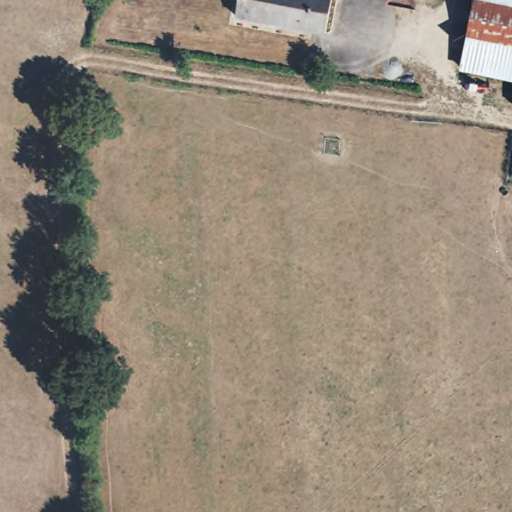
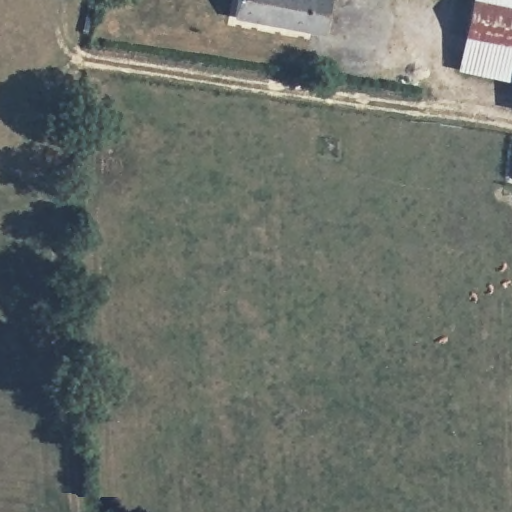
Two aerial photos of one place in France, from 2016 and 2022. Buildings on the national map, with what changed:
unchanged [(322,28),(233,13),(236,0),(327,0),(322,28)]
unchanged [(457,65),(471,0),(512,0),(512,77),(457,65)]

